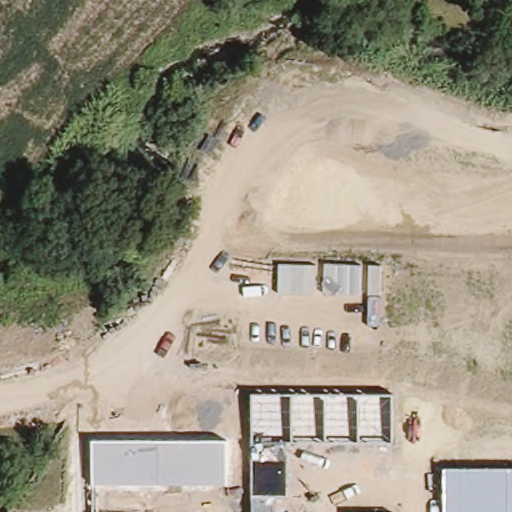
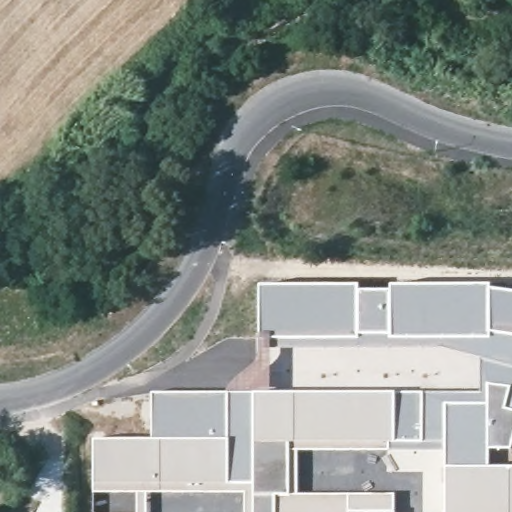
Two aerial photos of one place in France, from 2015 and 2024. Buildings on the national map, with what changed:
new [(357,285),(358,290),(388,289),(388,285),(490,285),(490,290),(490,289),(512,292),(512,410),(512,444),(510,450),(489,450),(489,466),(444,466),(444,450),(388,450),(388,441),(393,442),(393,391),(480,392),(480,360),(440,348),(258,349),(258,337),(258,285),(357,285)]
new [(393,442),(388,441),(388,450),(295,449),(296,493),(393,493),(393,511),(348,511),(348,512),(253,512),(253,480),(253,441),(252,392),(393,391),(393,442)]
new [(227,392),(252,392),(253,441),(253,480),(227,480),(227,440),(152,439),(150,392),(227,392)]
unchanged [(93,438),(227,440),(227,484),(93,482),(93,438)]
unchanged [(512,466),(512,512),(444,512),(444,466),(512,466)]
new [(147,491),(147,512),(138,512),(137,489),(93,490),(93,482),(227,484),(227,480),(253,480),(253,512),(244,512),(244,490),(147,491)]
unchanged [(393,511),(393,512),(348,512),(348,511),(393,511)]

